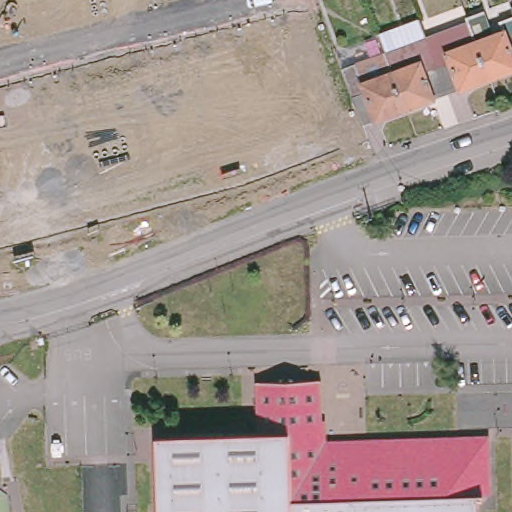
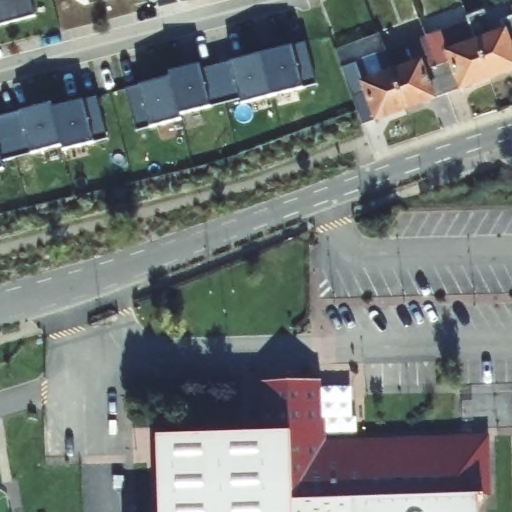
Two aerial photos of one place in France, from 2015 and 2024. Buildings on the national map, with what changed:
new [(31,0),(35,16),(0,25),(0,0),(31,0)]
unchanged [(445,96),(423,39),(466,24),(475,47),(488,81),(445,96)]
unchanged [(403,111),(381,53),(423,39),(445,96),(403,111)]
new [(168,77),(167,73),(200,65),(202,70),(306,43),(316,83),(242,103),(240,98),(180,113),(182,118),(139,130),(126,90),(168,77)]
unchanged [(339,67),(381,53),(403,111),(361,126),(339,67)]
new [(52,101),(53,107),(96,96),(107,138),(63,151),(61,146),(1,161),(3,169),(0,169),(0,116),(52,101)]
unchanged [(324,443),(484,438),(486,491),(483,492),(484,497),(478,498),(479,512),(159,512),(156,432),(258,429),(256,379),(321,376),(324,443)]

